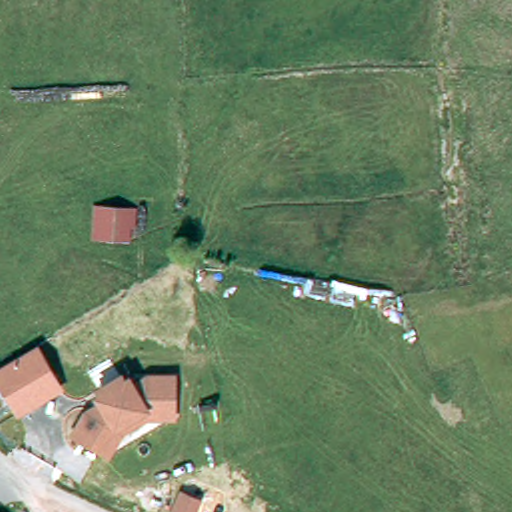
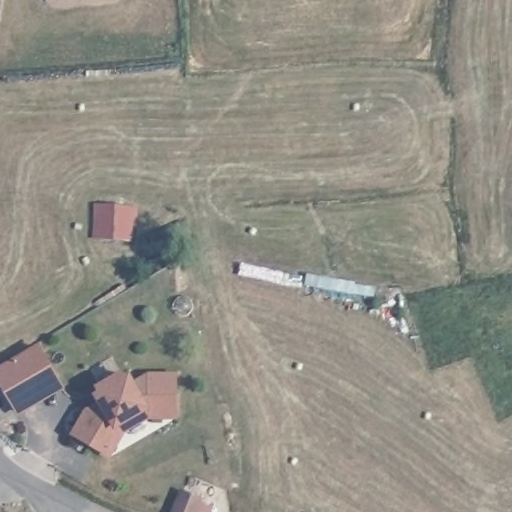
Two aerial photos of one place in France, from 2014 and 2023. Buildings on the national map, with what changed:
unchanged [(129,203),(128,234),(102,235),(102,204),(129,203)]
unchanged [(63,387),(18,415),(0,386),(0,364),(35,342),(63,387)]
unchanged [(70,431),(95,396),(100,393),(96,387),(125,371),(128,375),(132,374),(134,379),(145,371),(179,373),(177,419),(151,414),(128,427),(113,458),(70,431)]
unchanged [(181,490),(204,500),(199,512),(172,512),(181,490)]

